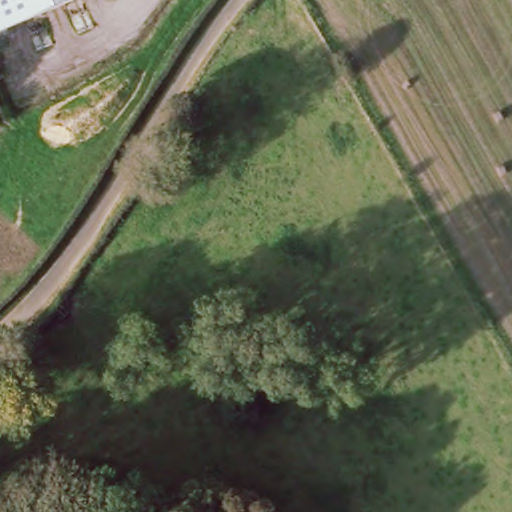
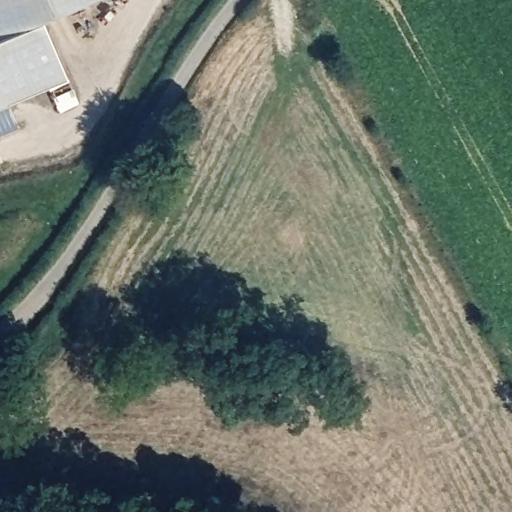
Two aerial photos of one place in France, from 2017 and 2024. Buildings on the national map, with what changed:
unchanged [(46,21),(0,39),(0,0),(98,0),(46,21)]
new [(10,103),(20,127),(0,135),(0,39),(46,21),(70,78),(10,103)]

